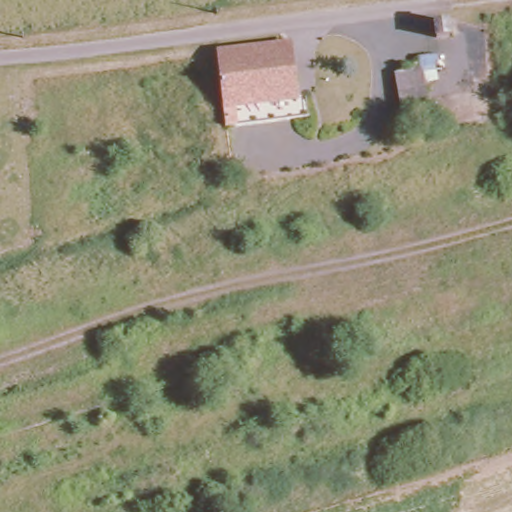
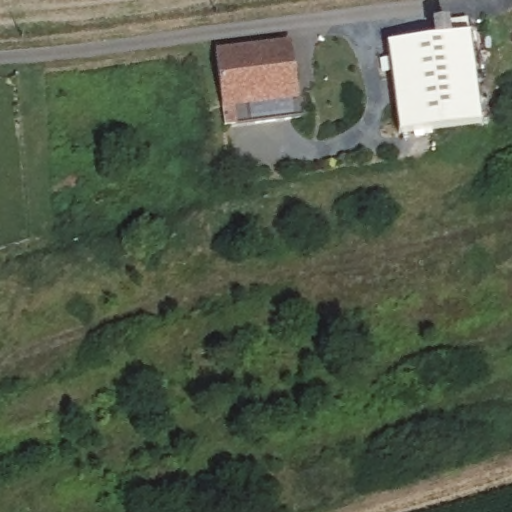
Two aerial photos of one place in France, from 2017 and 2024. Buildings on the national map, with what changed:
new [(388,44),(470,34),(481,124),(400,134),(388,44)]
unchanged [(227,126),(216,49),(294,39),(299,94),(308,94),(310,116),(227,126)]
demolished [(390,65),(418,64),(423,115),(396,117),(390,65)]

